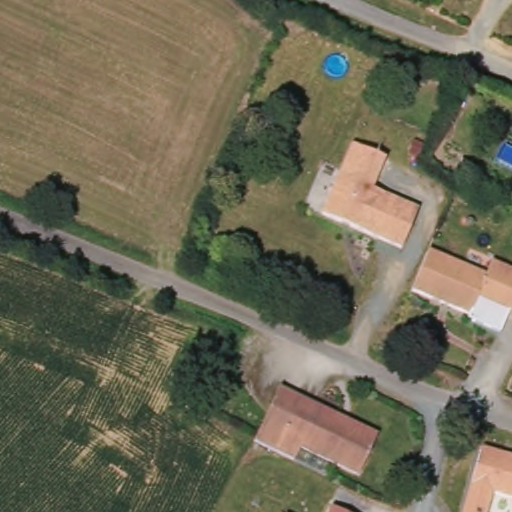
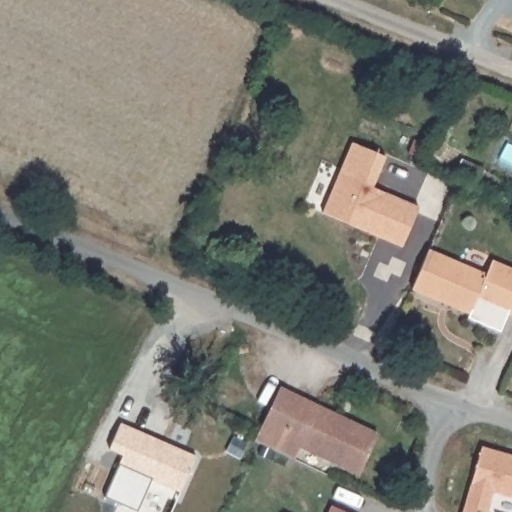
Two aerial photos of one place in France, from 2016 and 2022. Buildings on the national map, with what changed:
unchanged [(352,154),(356,143),(362,145),(390,157),(385,170),(377,188),(424,207),(408,247),(328,214),(352,154)]
unchanged [(414,287),(415,284),(430,249),(487,272),(489,267),(490,263),(493,258),(512,266),(512,304),(509,311),(481,300),(477,298),(472,312),(454,305),(413,288),(414,287)]
unchanged [(505,317),(499,332),(468,319),(472,312),(477,298),(481,300),(509,311),(512,304),(512,320),(505,317)]
unchanged [(257,439),(282,388),(301,397),(275,448),(257,439)]
unchanged [(301,397),(380,434),(361,474),(302,446),(296,459),(288,455),(275,448),(301,397)]
new [(195,456),(180,491),(151,478),(119,464),(120,462),(105,454),(108,449),(120,422),(195,456)]
unchanged [(492,493),(486,512),(462,512),(482,445),(512,454),(512,499),(492,493)]
new [(151,478),(137,511),(104,496),(119,464),(151,478)]
unchanged [(342,512),(326,512),(329,506),(342,512)]

